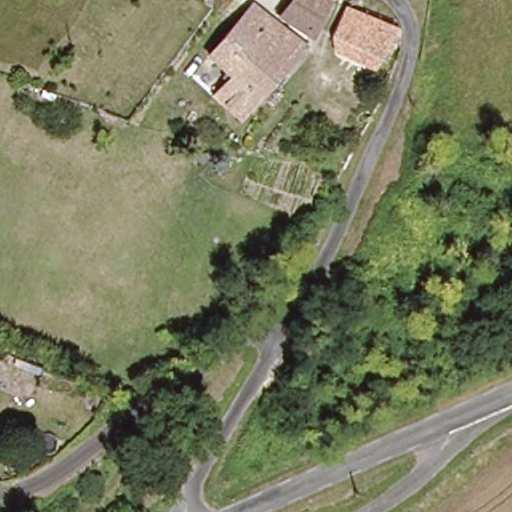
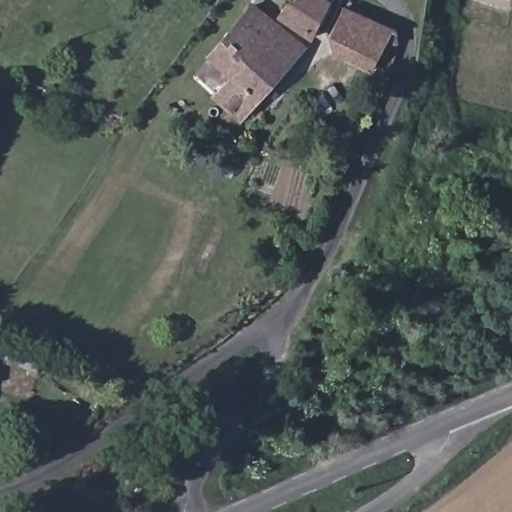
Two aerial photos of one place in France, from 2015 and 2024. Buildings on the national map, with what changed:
unchanged [(242,126),(206,104),(230,74),(204,52),(257,1),(276,16),(287,0),(328,0),(311,41),(242,126)]
unchanged [(394,25),(370,72),(328,42),(351,1),(394,25)]

